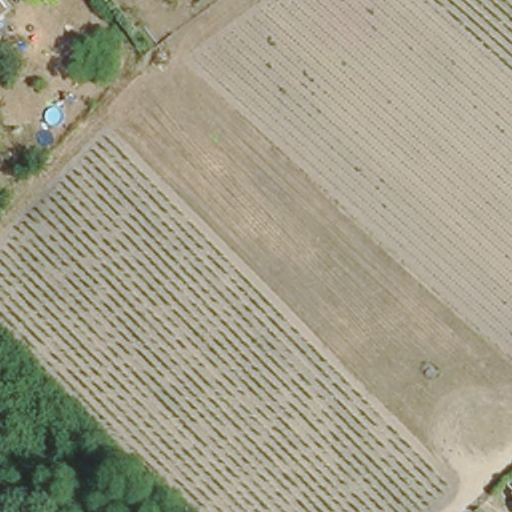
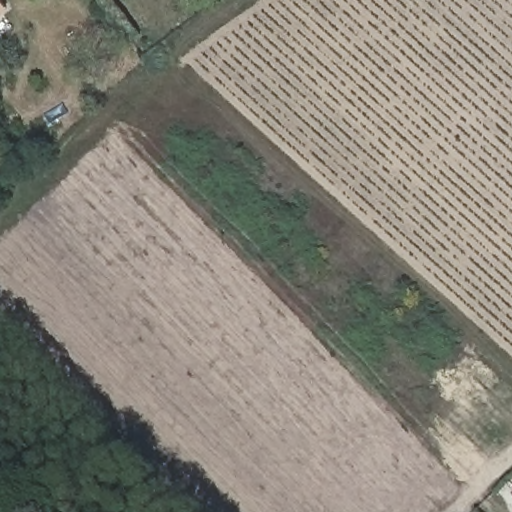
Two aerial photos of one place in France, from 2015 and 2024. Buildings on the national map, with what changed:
unchanged [(0,7),(0,0),(1,0),(4,5),(0,7)]
unchanged [(511,489),(512,488),(512,490),(511,489)]

